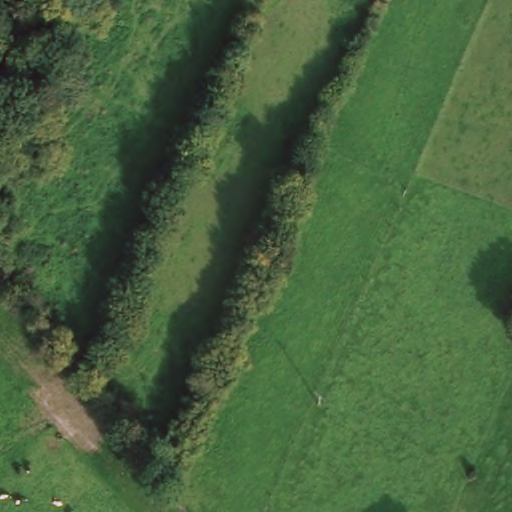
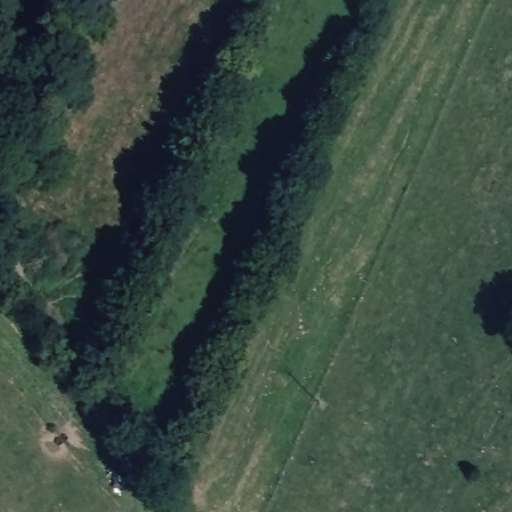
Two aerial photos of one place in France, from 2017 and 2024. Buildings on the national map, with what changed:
[]

